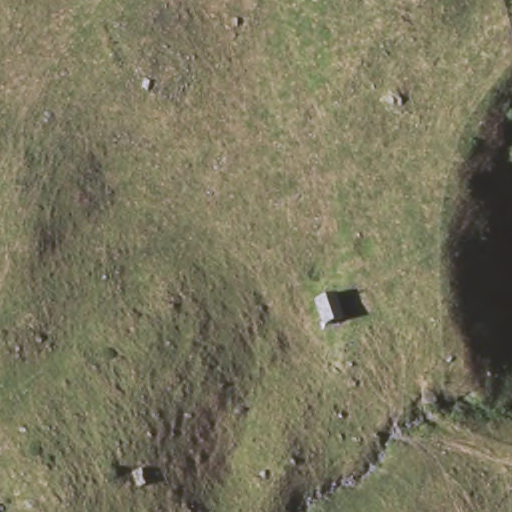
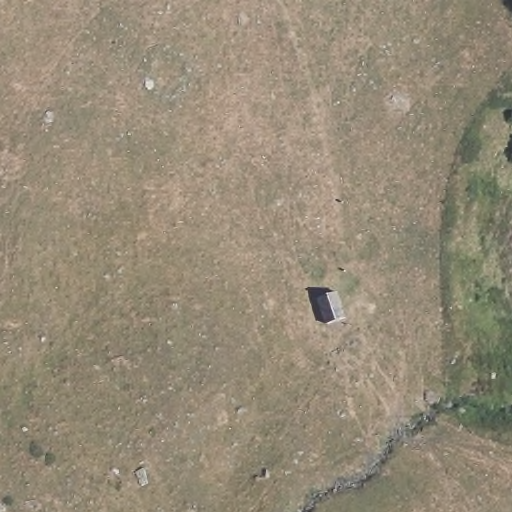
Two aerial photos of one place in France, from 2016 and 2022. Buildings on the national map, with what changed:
unchanged [(316,302),(336,294),(348,323),(327,329),(316,302)]

